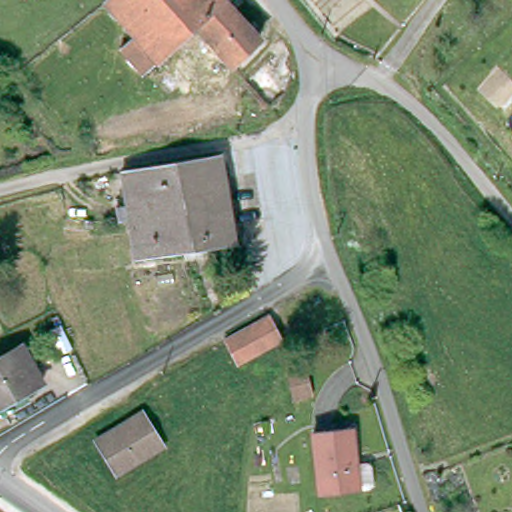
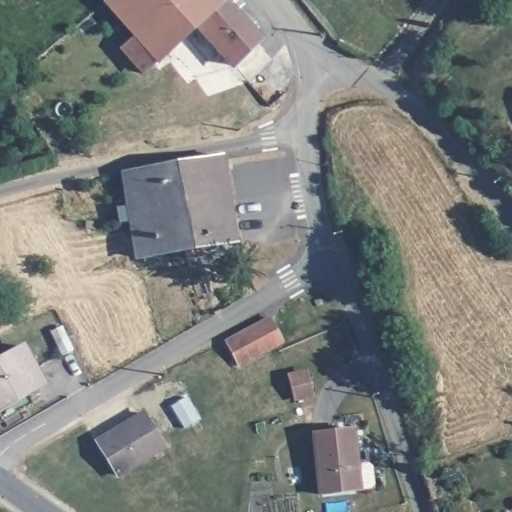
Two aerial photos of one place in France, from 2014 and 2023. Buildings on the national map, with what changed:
unchanged [(120,42),(135,30),(108,0),(229,0),(260,34),(217,76),(188,47),(207,31),(197,20),(157,56),(156,55),(142,67),(120,42)]
unchanged [(142,262),(142,256),(135,258),(130,223),(125,224),(118,225),(115,207),(127,205),(122,172),(220,155),(235,241),(201,246),(202,257),(187,260),(182,250),(154,254),(155,260),(142,262)]
unchanged [(93,222),(93,230),(84,229),(85,221),(93,222)]
unchanged [(270,317),(282,342),(275,346),(238,366),(225,341),(270,317)]
unchanged [(73,351),(60,356),(48,331),(61,326),(73,351)]
unchanged [(42,385),(0,408),(0,359),(22,347),(42,385)]
unchanged [(163,442),(115,471),(95,438),(143,408),(163,442)]
unchanged [(312,423),(350,419),(357,481),(318,485),(312,423)]

